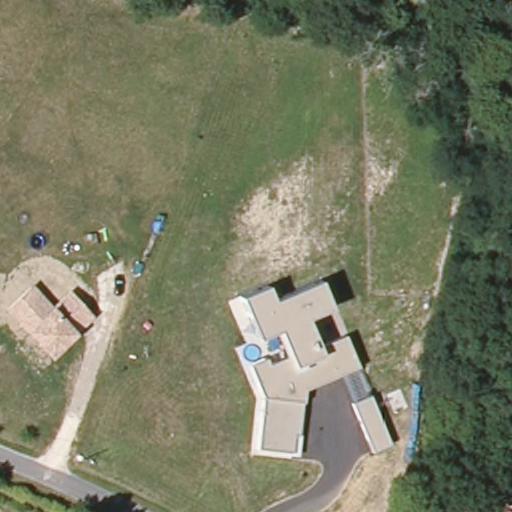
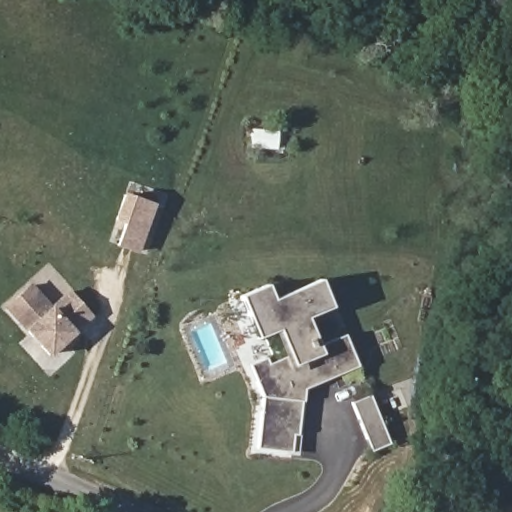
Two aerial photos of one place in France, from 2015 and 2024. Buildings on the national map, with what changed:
new [(114,222),(124,192),(156,204),(139,255),(116,248),(124,225),(114,222)]
unchanged [(292,452),(256,449),(262,400),(248,365),(281,355),(272,334),(256,340),(237,299),(265,287),(271,300),(319,281),(328,308),(305,317),(316,348),(342,338),(355,368),(302,388),(292,452)]
unchanged [(76,334),(48,358),(25,331),(4,308),(31,284),(51,306),(69,290),(94,317),(76,334)]
unchanged [(368,397),(390,448),(370,455),(351,405),(368,397)]

